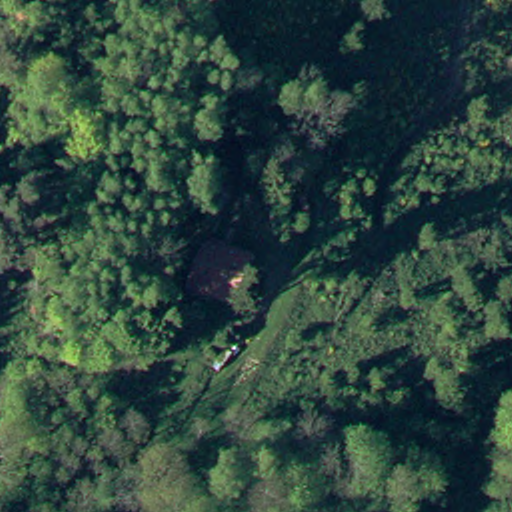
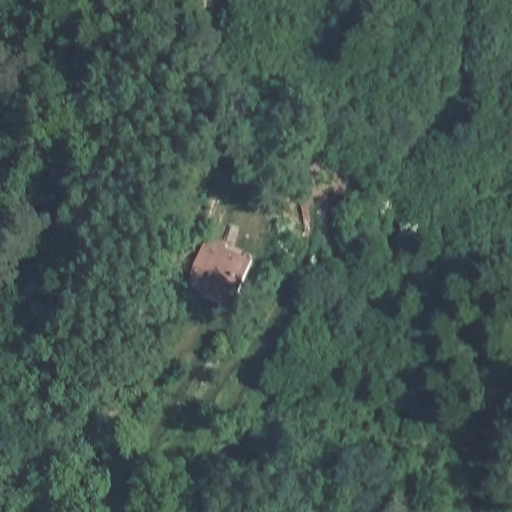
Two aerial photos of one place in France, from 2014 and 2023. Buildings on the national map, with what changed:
unchanged [(179,281),(195,238),(244,258),(226,299),(179,281)]

